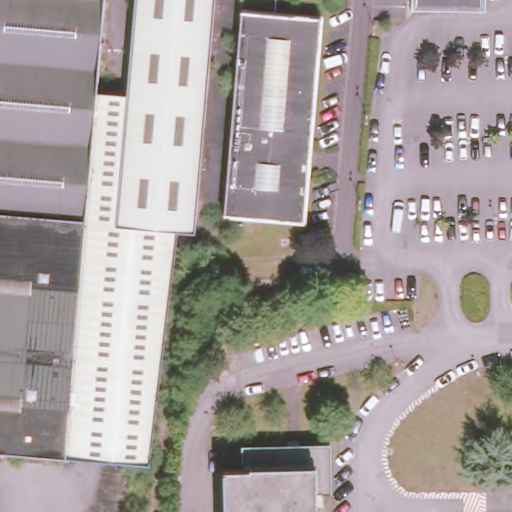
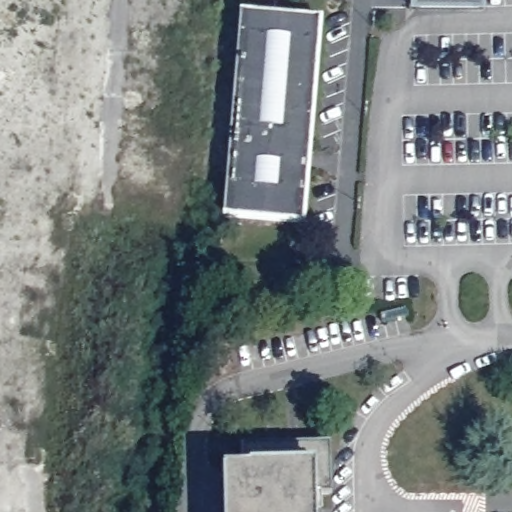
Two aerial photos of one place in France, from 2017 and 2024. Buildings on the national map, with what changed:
demolished [(91,87),(59,454),(0,449),(0,0),(99,0),(91,87)]
demolished [(120,92),(129,0),(139,0),(119,222),(108,221),(120,92)]
demolished [(139,0),(209,0),(188,228),(171,226),(119,222),(139,0)]
unchanged [(413,12),(412,0),(485,0),(484,11),(413,12)]
unchanged [(304,217),(223,211),(241,8),(320,14),(304,217)]
unchanged [(234,216),(233,228),(224,228),(226,216),(234,216)]
unchanged [(243,467),(243,446),(328,443),(331,492),(314,492),(314,512),(228,512),(228,468),(243,467)]

